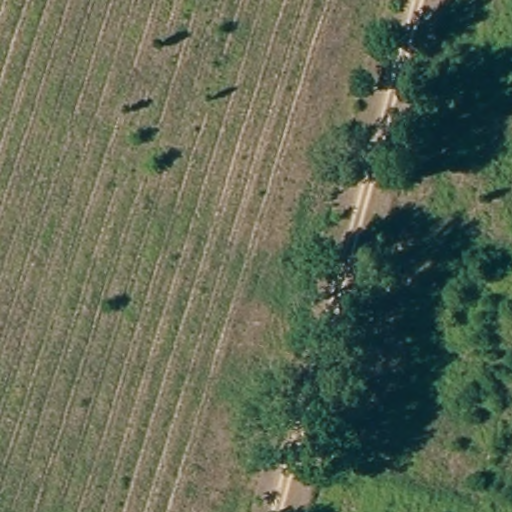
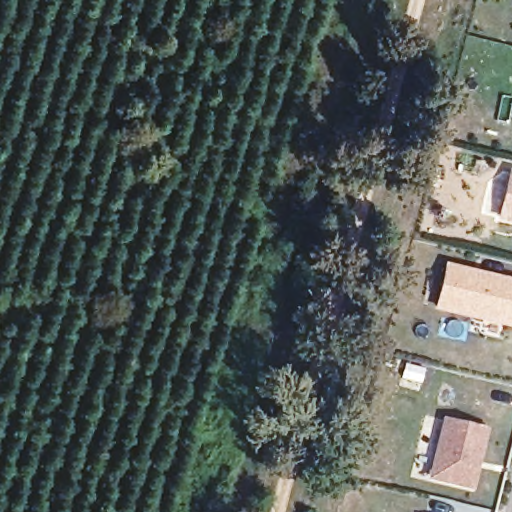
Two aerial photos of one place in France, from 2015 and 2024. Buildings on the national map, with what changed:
new [(512,170),(512,224),(497,220),(509,170),(512,170)]
new [(434,310),(445,262),(512,279),(512,328),(434,310)]
new [(427,479),(443,416),(489,427),(473,490),(427,479)]

